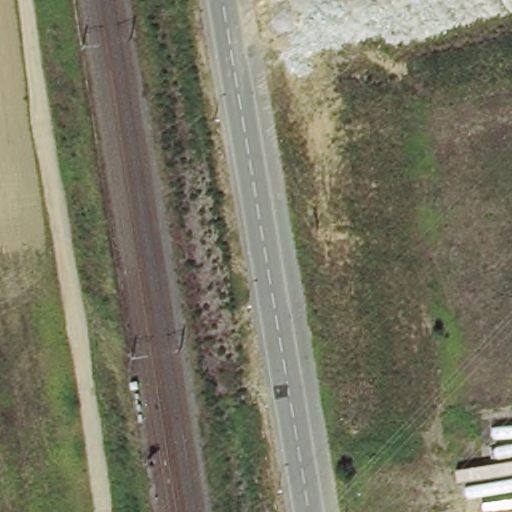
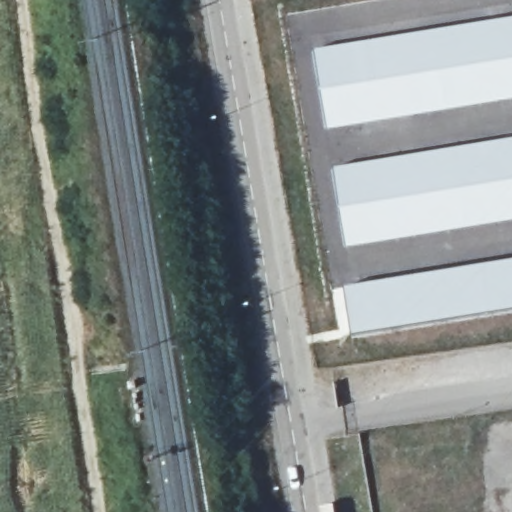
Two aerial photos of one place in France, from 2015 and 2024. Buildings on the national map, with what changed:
new [(327,129),(314,49),(512,16),(512,99),(327,129)]
new [(346,247),(333,166),(512,136),(512,220),(346,247)]
new [(498,313),(352,335),(344,285),(512,258),(512,310),(498,313)]

